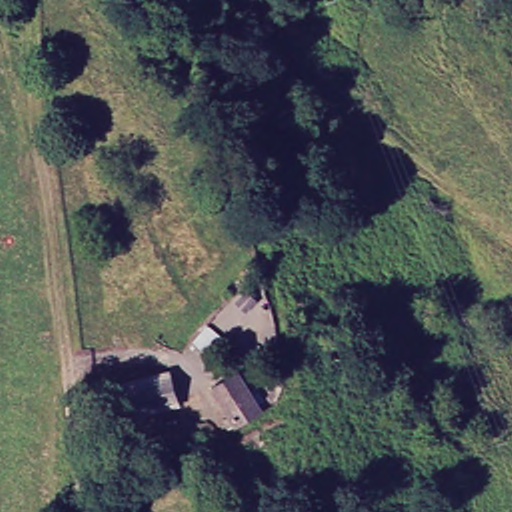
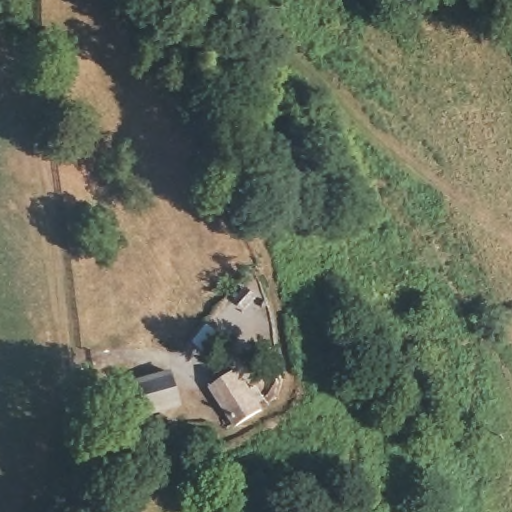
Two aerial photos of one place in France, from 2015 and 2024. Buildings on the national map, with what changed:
unchanged [(227,415),(233,408),(216,383),(242,364),(269,402),(236,428),(227,415)]
unchanged [(127,376),(172,369),(180,406),(132,412),(127,376)]

